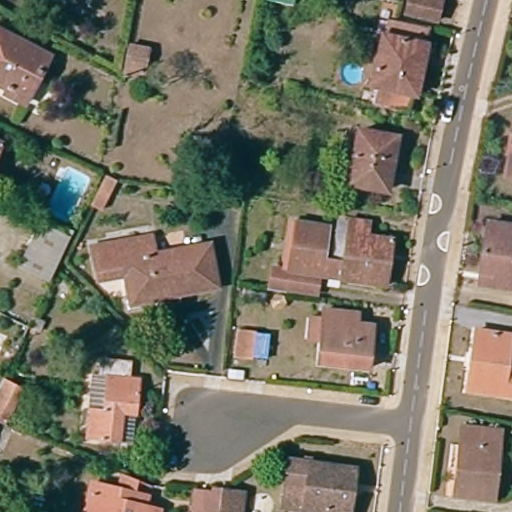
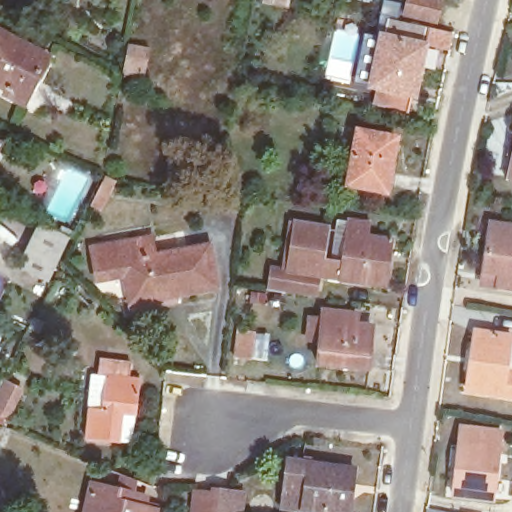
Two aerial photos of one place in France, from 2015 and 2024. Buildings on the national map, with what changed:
unchanged [(406,12),(409,0),(443,0),(438,21),(406,12)]
unchanged [(49,56),(26,102),(9,93),(11,88),(0,83),(0,29),(49,56)]
unchanged [(408,94),(370,85),(383,31),(428,42),(420,79),(416,96),(408,94)]
unchanged [(127,39),(145,42),(140,69),(121,67),(127,39)]
unchanged [(398,190),(345,182),(354,126),(406,134),(398,190)]
unchanged [(4,142),(0,149),(0,141),(4,142)]
unchanged [(512,153),(512,168),(508,167),(512,153)]
unchanged [(64,225),(67,219),(76,222),(72,229),(76,232),(67,255),(52,285),(11,265),(36,212),(64,225)]
unchanged [(492,214),(512,217),(512,279),(497,278),(485,276),(485,263),(492,214)]
unchanged [(380,281),(360,278),(359,282),(338,281),(336,277),(312,274),(310,292),(279,288),(279,293),(264,292),(267,266),(286,268),(293,222),(326,226),(321,257),(340,260),(347,218),(370,220),(368,234),(395,237),(393,252),(390,282),(380,281)]
unchanged [(134,292),(130,271),(102,273),(96,244),(154,234),(156,251),(211,242),(218,282),(175,290),(134,297),(134,292)]
unchanged [(357,311),(365,312),(365,323),(377,325),(373,368),(324,362),(327,339),(313,337),(316,313),(330,316),(331,307),(357,311)]
unchanged [(250,358),(235,356),(240,328),(254,330),(250,358)]
unchanged [(510,336),(508,342),(512,342),(512,396),(466,389),(473,331),(510,336)]
unchanged [(135,357),(131,372),(145,375),(136,412),(126,411),(122,439),(85,432),(92,403),(100,365),(104,366),(106,352),(135,357)]
unchanged [(7,422),(0,418),(0,385),(21,394),(7,422)]
unchanged [(493,499),(455,494),(464,422),(501,427),(493,499)]
unchanged [(351,512),(323,512),(323,507),(278,501),(281,487),(283,454),(307,457),(356,462),(355,478),(351,507),(351,512)]
unchanged [(147,505),(160,512),(159,512),(87,512),(94,483),(120,488),(121,472),(141,481),(139,493),(149,495),(147,505)]
unchanged [(215,490),(219,490),(229,492),(226,512),(212,512),(215,490)]

